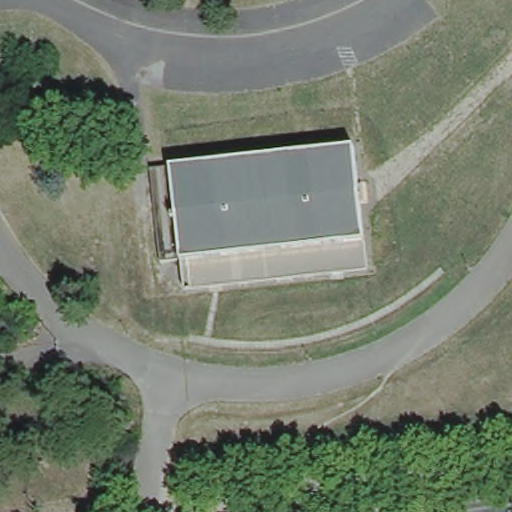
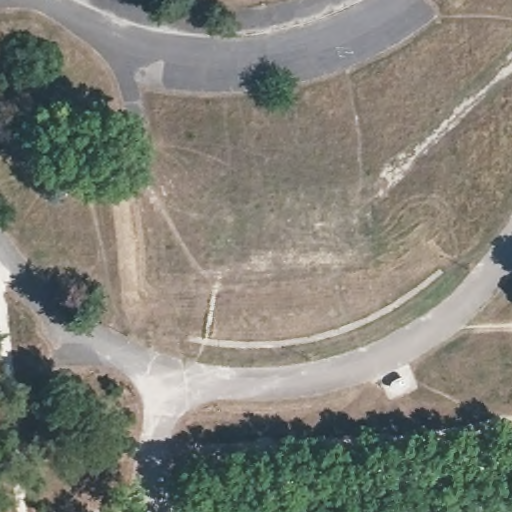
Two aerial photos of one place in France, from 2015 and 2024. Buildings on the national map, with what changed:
demolished [(182,285),(179,258),(159,261),(149,169),(353,145),(366,266),(182,285)]

